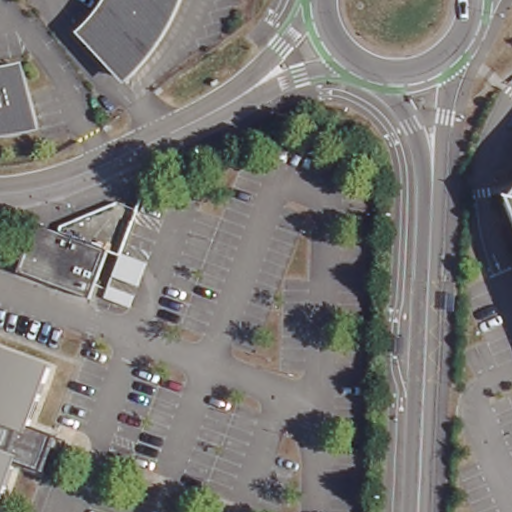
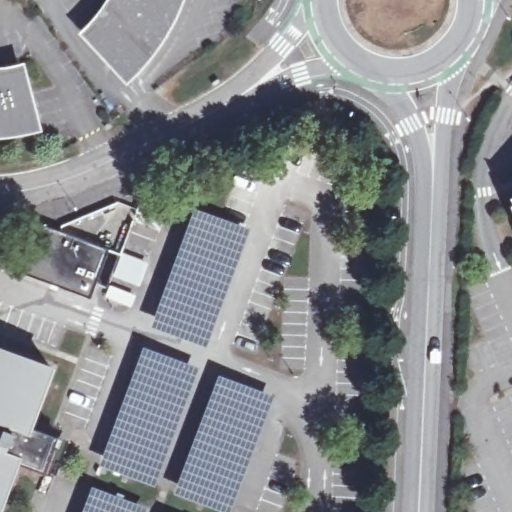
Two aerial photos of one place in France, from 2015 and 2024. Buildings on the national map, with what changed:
unchanged [(155,49),(126,83),(84,38),(104,14),(111,0),(180,0),(170,24),(155,49)]
unchanged [(8,74),(21,72),(36,132),(28,134),(21,135),(15,136),(7,137),(0,138),(0,75),(8,74)]
new [(193,206),(251,227),(207,348),(149,326),(193,206)]
unchanged [(105,247),(87,296),(16,269),(34,220),(105,247)]
unchanged [(142,264),(137,278),(113,269),(117,256),(142,264)]
unchanged [(131,294),(127,303),(104,294),(107,285),(131,294)]
new [(107,438),(142,344),(202,368),(172,449),(155,487),(98,464),(107,438)]
unchanged [(32,424),(61,434),(46,472),(17,462),(0,506),(0,346),(57,360),(32,424)]
new [(217,374),(274,394),(228,512),(224,512),(172,492),(217,374)]
new [(90,488),(92,489),(93,487),(97,488),(94,497),(100,499),(97,509),(96,512),(80,512),(90,488)]

